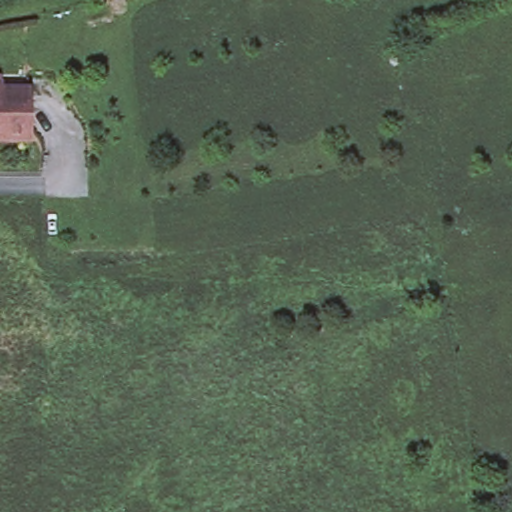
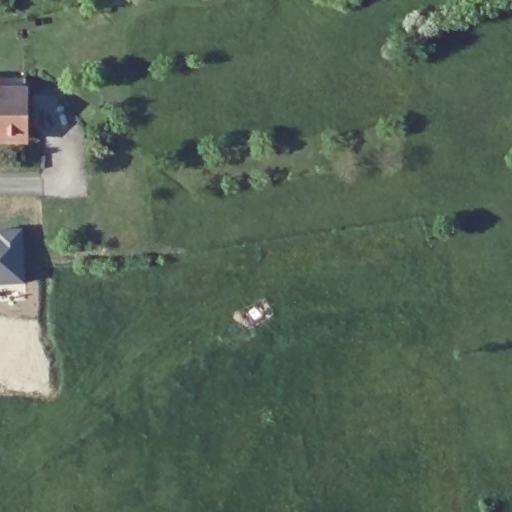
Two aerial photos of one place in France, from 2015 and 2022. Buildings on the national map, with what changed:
unchanged [(28,82),(27,95),(26,108),(25,142),(6,141),(0,141),(0,80),(25,82),(28,82)]
new [(25,285),(0,286),(0,232),(22,232),(25,285)]

